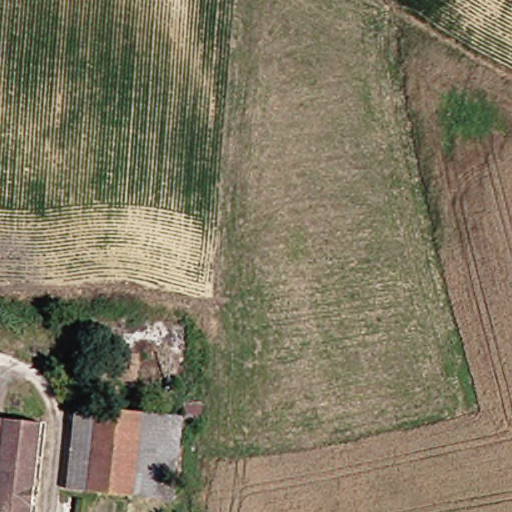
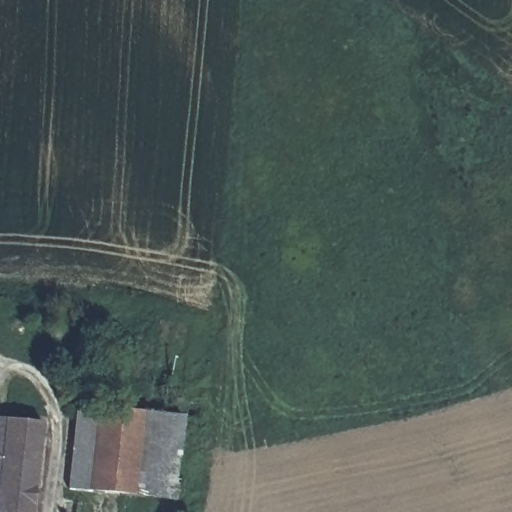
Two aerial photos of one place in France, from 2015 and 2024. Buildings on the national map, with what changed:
unchanged [(78,480),(88,406),(185,417),(194,418),(188,465),(184,492),(78,480)]
unchanged [(4,512),(7,485),(0,485),(0,420),(9,421),(47,427),(34,512),(4,512)]
unchanged [(4,512),(0,512),(0,485),(7,485),(4,512)]

